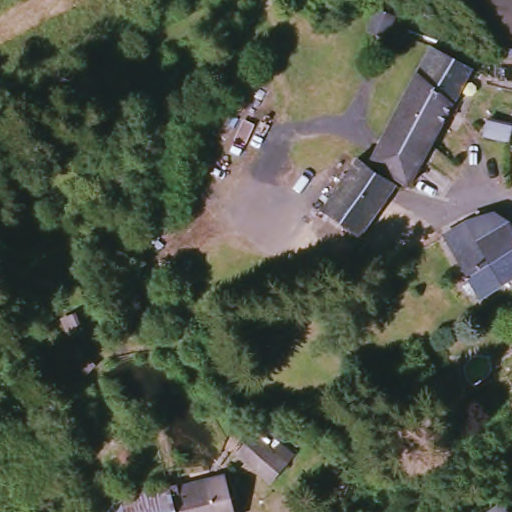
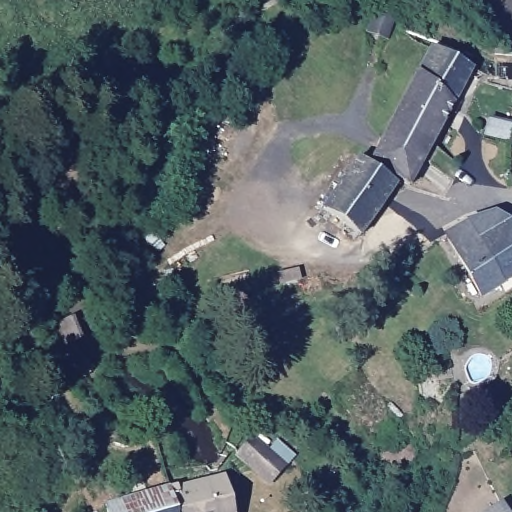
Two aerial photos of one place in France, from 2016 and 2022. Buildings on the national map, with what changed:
unchanged [(390,36),(371,28),(380,9),(397,18),(390,36)]
unchanged [(433,46),(474,67),(467,79),(410,185),(372,160),(433,46)]
unchanged [(362,236),(324,209),(360,157),(398,183),(362,236)]
unchanged [(497,210),(510,220),(512,222),(512,275),(485,292),(446,233),(470,218),(497,210)]
unchanged [(255,434),(291,462),(275,479),(240,454),(255,434)]
unchanged [(174,490),(235,474),(242,512),(177,512),(170,486),(172,485),(174,490)]
unchanged [(95,512),(95,510),(107,506),(106,503),(170,486),(177,512),(95,512)]
unchanged [(499,512),(488,512),(495,507),(499,512)]

